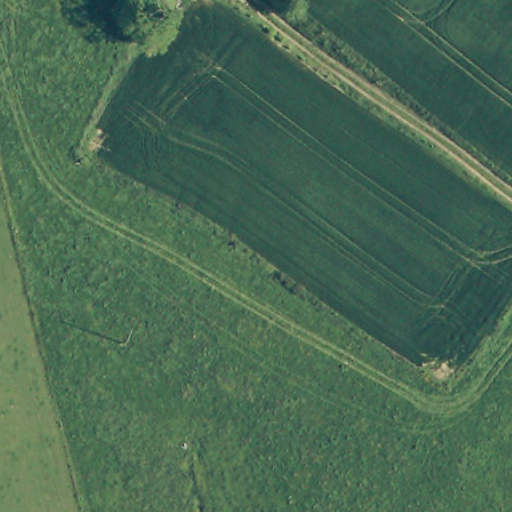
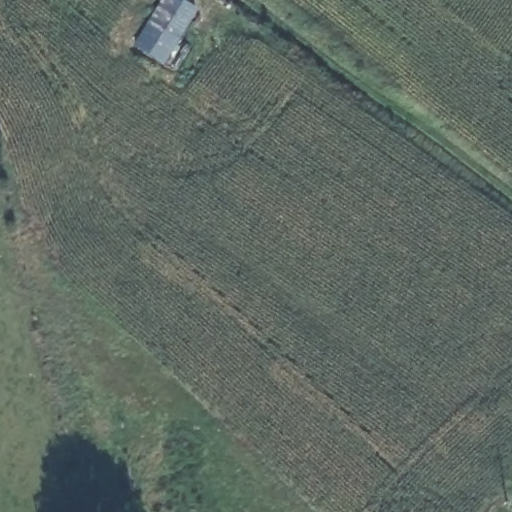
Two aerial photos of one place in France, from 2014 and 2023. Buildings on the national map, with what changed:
new [(164,63),(133,45),(160,0),(186,0),(198,7),(164,63)]

